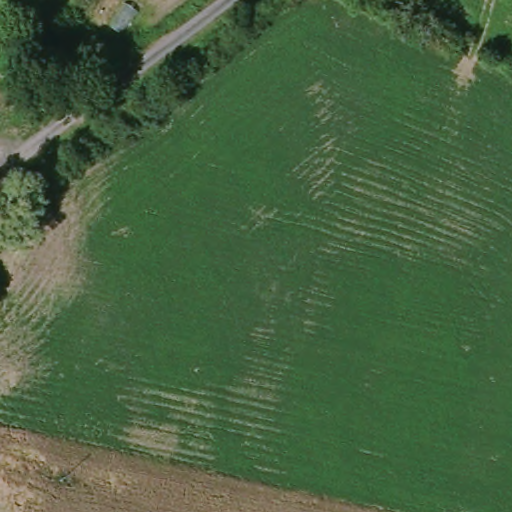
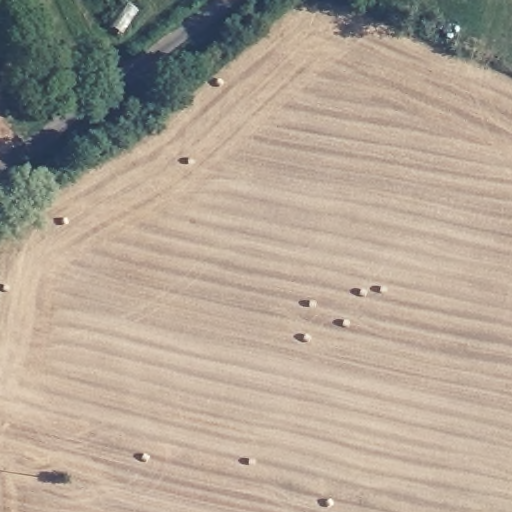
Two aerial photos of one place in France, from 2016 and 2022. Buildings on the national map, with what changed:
[]

